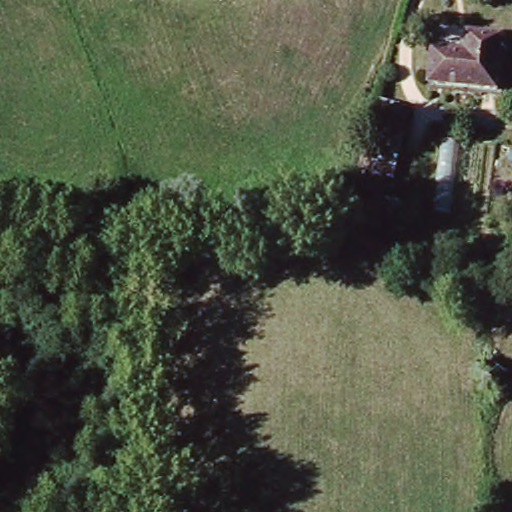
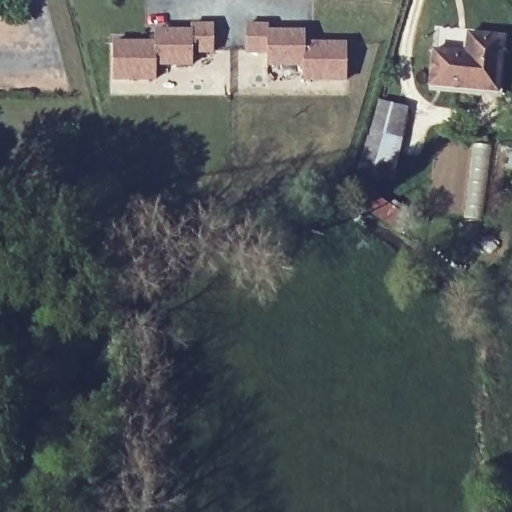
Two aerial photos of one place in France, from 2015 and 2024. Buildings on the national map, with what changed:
new [(156,42),(157,30),(165,30),(193,30),(193,24),(215,25),(215,51),(194,51),(193,64),(157,64),(157,78),(115,77),(115,41),(156,42)]
new [(246,25),(268,25),(268,31),(296,32),(296,44),(346,45),(345,81),(303,81),(303,66),(267,65),(267,52),(246,52),(246,25)]
unchanged [(500,92),(437,87),(441,38),(504,43),(500,92)]
unchanged [(363,173),(383,98),(408,108),(391,184),(363,173)]

